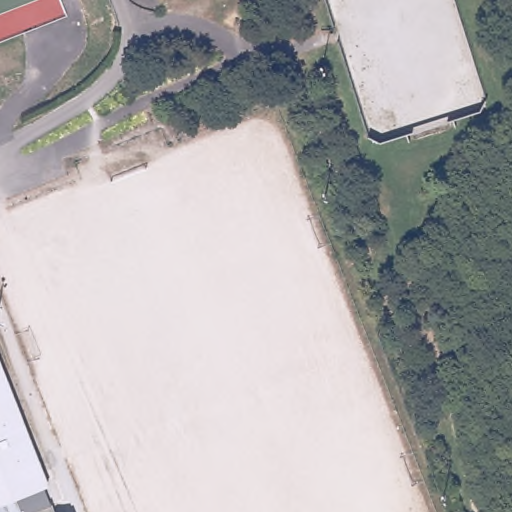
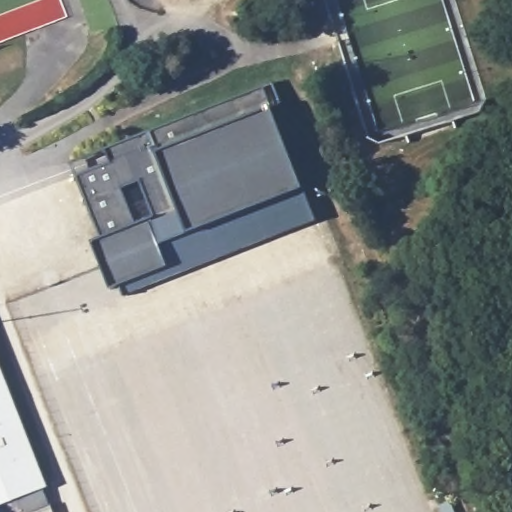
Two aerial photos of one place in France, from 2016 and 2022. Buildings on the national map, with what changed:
new [(125,298),(120,286),(111,289),(92,243),(102,239),(71,162),(265,87),(273,109),(304,187),(317,221),(125,298)]
unchanged [(40,488),(46,504),(26,512),(17,512),(17,511),(13,512),(0,512),(0,370),(46,486),(40,488)]

